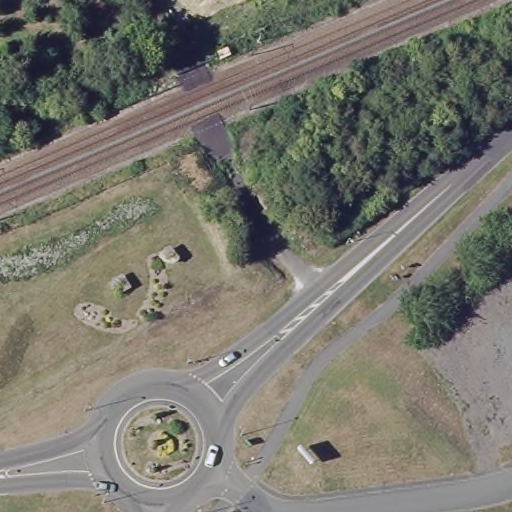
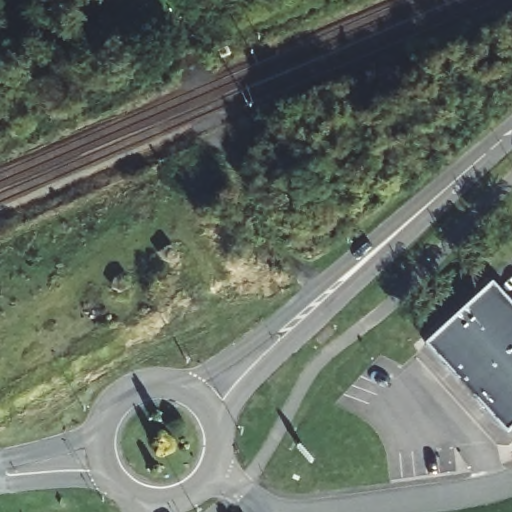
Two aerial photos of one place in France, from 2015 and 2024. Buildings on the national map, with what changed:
unchanged [(249,220),(236,228),(243,243),(241,256),(223,262),(201,227),(194,202),(211,191),(224,205),(235,201),(249,220)]
new [(491,286),(512,309),(512,432),(507,437),(424,348),(491,286)]

